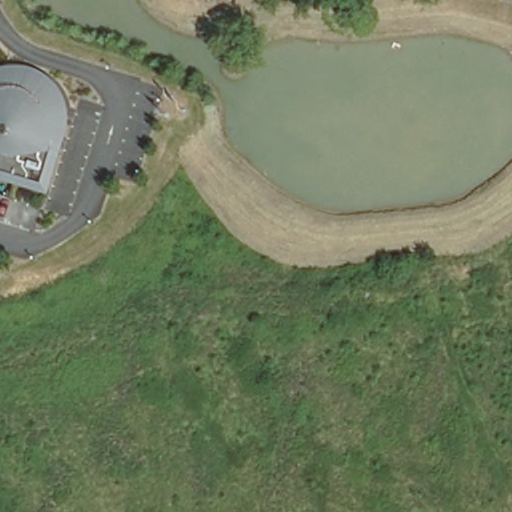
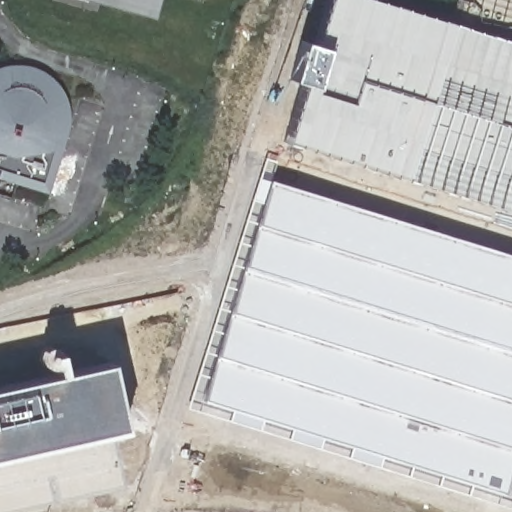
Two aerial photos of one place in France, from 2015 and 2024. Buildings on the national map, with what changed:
new [(86,0),(161,0),(155,19),(86,0)]
new [(287,80),(300,40),(308,44),(325,0),(376,0),(512,42),(512,210),(284,140),(300,84),(287,80)]
unchanged [(33,67),(52,79),(64,100),(68,116),(61,143),(45,192),(0,178),(0,66),(14,64),(33,67)]
new [(268,186),(512,261),(512,457),(501,492),(202,399),(229,314),(268,186)]
new [(123,430),(0,457),(0,387),(109,363),(123,430)]

